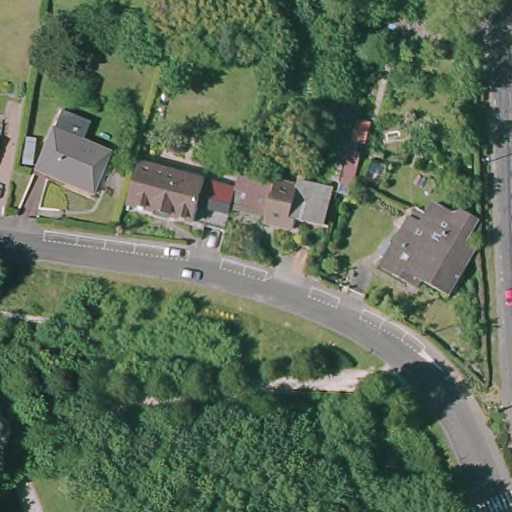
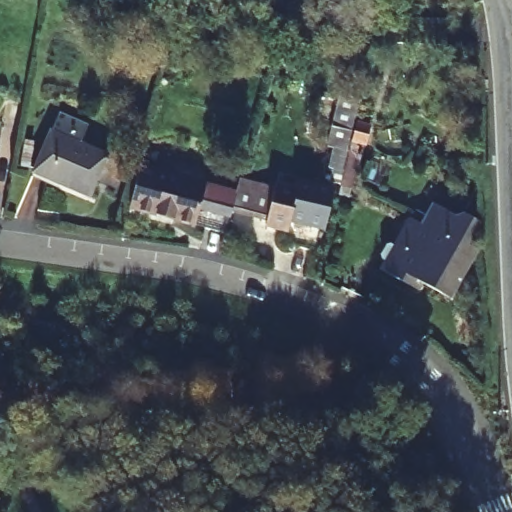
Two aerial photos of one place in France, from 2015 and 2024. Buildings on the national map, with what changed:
unchanged [(397,16),(446,18),(442,44),(395,40),(397,16)]
unchanged [(332,166),(328,166),(332,147),(327,146),(333,124),(340,94),(359,99),(354,119),(365,122),(357,153),(361,154),(354,181),(352,189),(337,185),(338,182),(328,180),(332,166)]
unchanged [(53,111),(82,124),(73,143),(99,155),(82,194),(28,171),(53,111)]
unchanged [(230,210),(225,231),(128,204),(139,166),(235,194),(230,210)]
unchanged [(240,175),(295,190),(297,181),(332,190),(323,225),(297,219),(293,232),(263,225),(265,220),(230,210),(235,194),(240,175)]
unchanged [(427,286),(423,292),(379,267),(383,260),(380,252),(385,244),(392,242),(410,212),(412,207),(425,214),(432,201),(453,212),(460,212),(478,223),(466,243),(476,249),(447,297),(427,286)]

